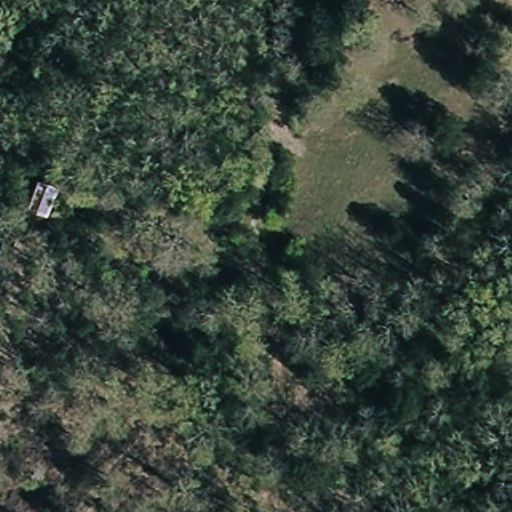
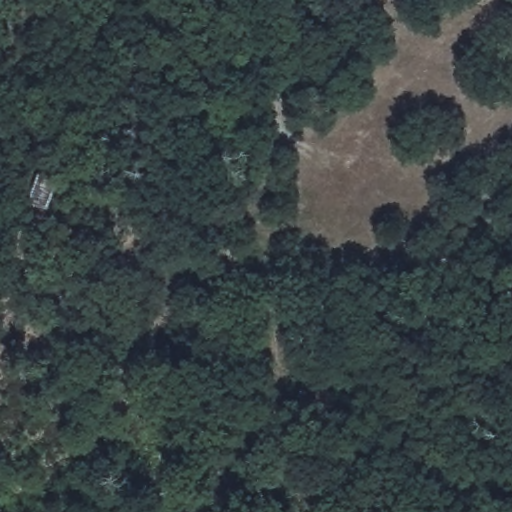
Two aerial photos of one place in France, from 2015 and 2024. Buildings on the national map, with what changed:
unchanged [(28,205),(36,180),(53,186),(47,211),(28,205)]

